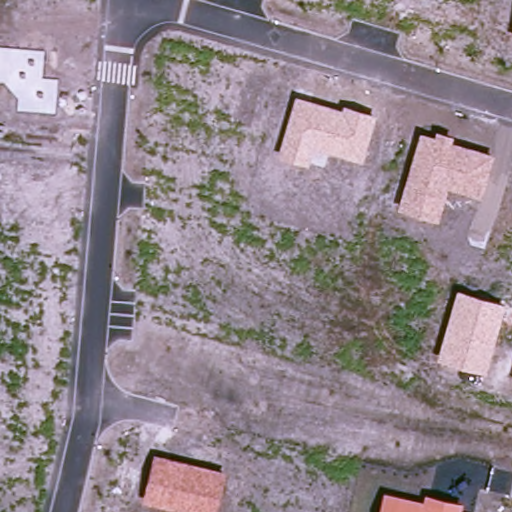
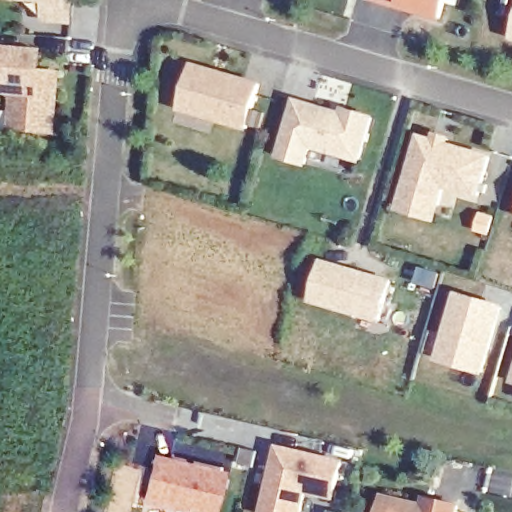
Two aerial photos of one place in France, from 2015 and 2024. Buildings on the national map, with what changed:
new [(74,1),(72,22),(44,20),(46,0),(40,0),(67,0),(66,1),(74,1)]
new [(379,0),(445,0),(440,18),(379,0)]
new [(48,49),(46,69),(63,70),(59,134),(10,130),(12,99),(7,94),(0,92),(0,44),(2,44),(48,49)]
new [(195,68),(259,86),(247,130),(182,110),(195,68)]
unchanged [(341,111),(342,105),(378,116),(364,164),(316,150),(311,169),(277,159),(295,98),(341,111)]
unchanged [(434,138),(436,131),(453,136),(451,144),(495,156),(483,199),(447,189),(438,223),(397,210),(420,134),(434,138)]
new [(324,264),(391,284),(380,322),(313,302),(324,264)]
unchanged [(506,307),(487,376),(437,362),(458,292),(506,307)]
new [(274,466),(278,449),(341,464),(333,498),(305,492),(300,512),(264,512),(273,471),(274,466)]
unchanged [(226,473),(218,512),(180,512),(144,504),(153,456),(226,473)]
unchanged [(425,503),(425,496),(464,504),(462,512),(380,512),(384,494),(425,503)]

